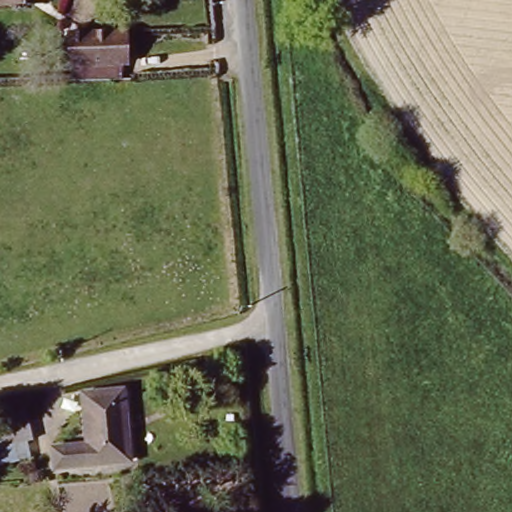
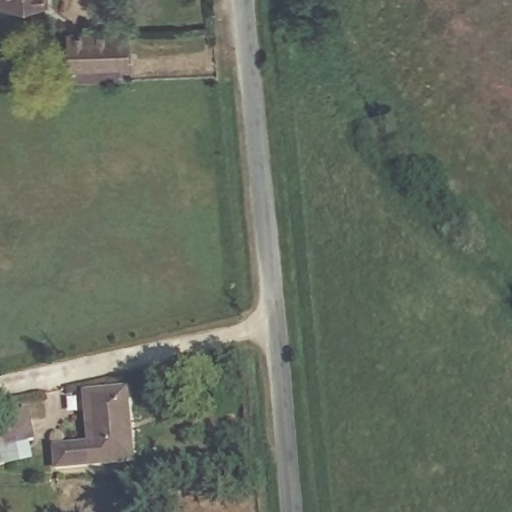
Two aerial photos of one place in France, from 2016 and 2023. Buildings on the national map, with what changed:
unchanged [(30,6),(0,7),(0,0),(30,0),(30,6)]
unchanged [(127,22),(129,56),(72,59),(70,25),(127,22)]
unchanged [(129,464),(53,471),(51,451),(88,448),(84,394),(122,391),(129,464)]
unchanged [(37,442),(5,448),(0,421),(0,415),(32,409),(37,442)]

